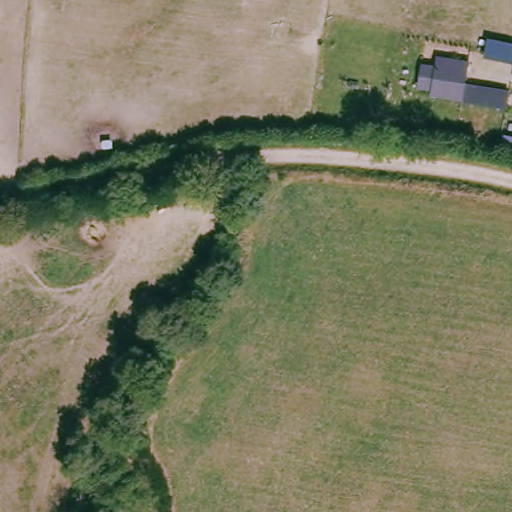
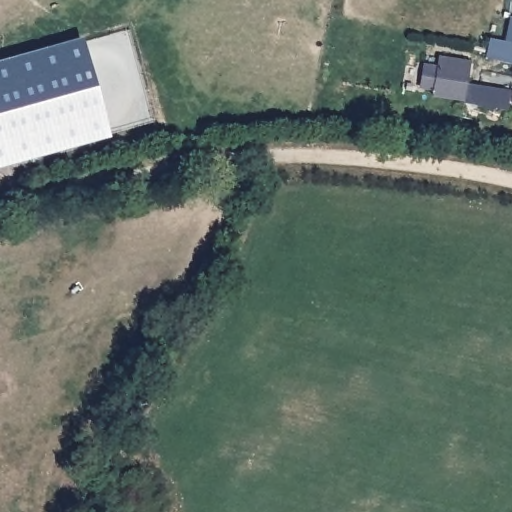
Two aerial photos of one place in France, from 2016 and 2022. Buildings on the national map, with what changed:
new [(488,40),(504,42),(508,20),(512,20),(512,63),(485,59),(488,40)]
new [(109,137),(0,167),(0,62),(80,39),(109,137)]
unchanged [(429,95),(431,87),(415,84),(419,62),(435,64),(436,55),(469,60),(461,100),(429,95)]

